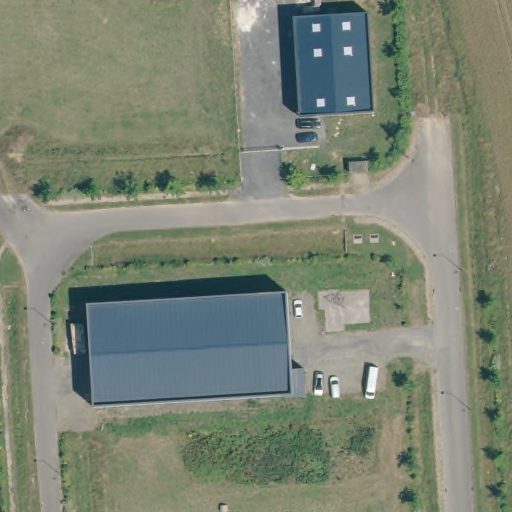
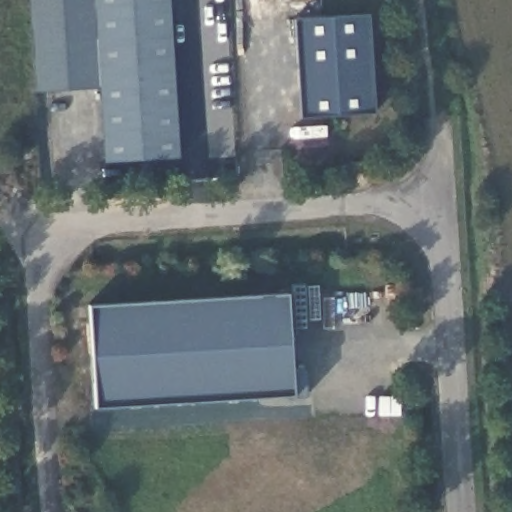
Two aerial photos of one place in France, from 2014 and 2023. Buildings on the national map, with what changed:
new [(104,162),(93,0),(168,0),(177,159),(104,162)]
unchanged [(369,14),(375,113),(301,117),(295,18),(369,14)]
unchanged [(287,293),(291,370),(305,368),(307,397),(293,397),(95,407),(89,307),(287,293)]

